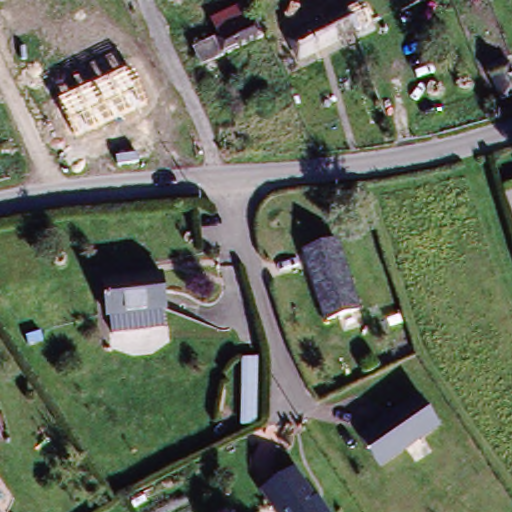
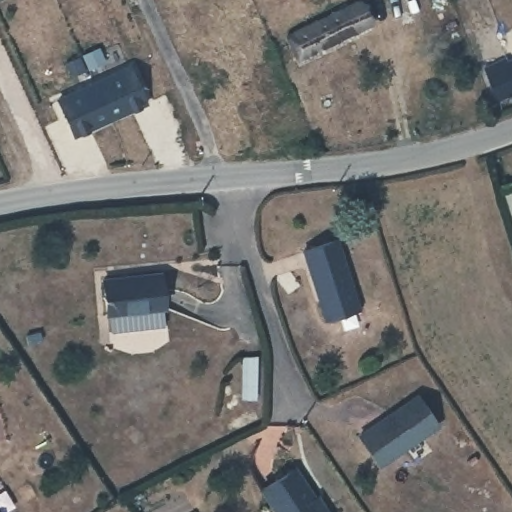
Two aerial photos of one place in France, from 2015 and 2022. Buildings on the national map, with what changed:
unchanged [(360,2),(369,25),(353,32),(356,40),(302,63),(291,34),(360,2)]
unchanged [(195,66),(187,47),(220,34),(211,13),(237,3),(245,23),(254,19),(263,39),(195,66)]
unchanged [(507,101),(494,68),(512,61),(512,99),(507,101)]
new [(75,136),(56,98),(132,64),(149,103),(75,136)]
unchanged [(504,188),(512,186),(512,219),(504,188)]
unchanged [(362,305),(330,315),(310,245),(342,236),(362,305)]
unchanged [(167,327),(116,332),(112,314),(109,314),(105,282),(165,275),(167,327)]
unchanged [(381,467),(365,434),(393,421),(395,424),(400,420),(400,417),(427,404),(444,436),(381,467)]
unchanged [(276,512),(260,488),(295,464),(325,512),(276,512)]

